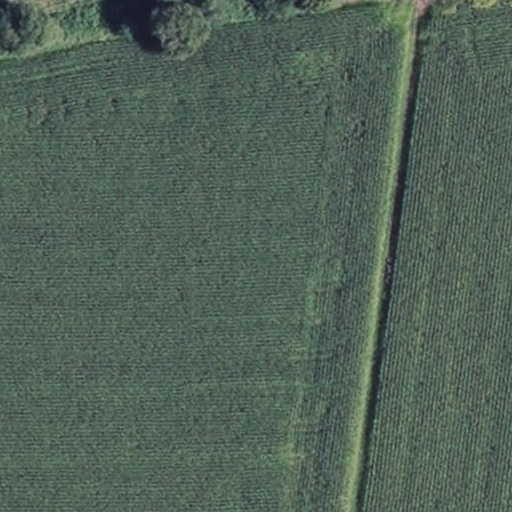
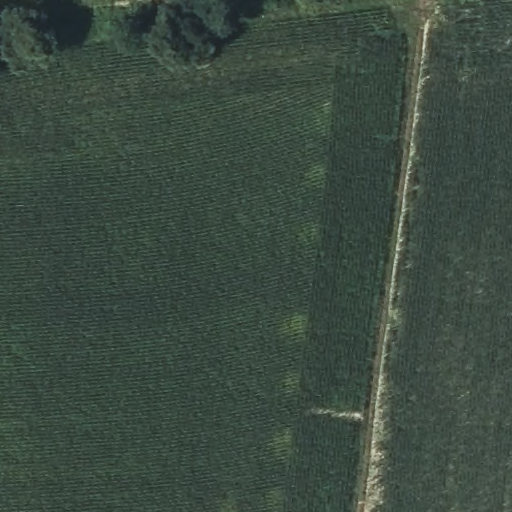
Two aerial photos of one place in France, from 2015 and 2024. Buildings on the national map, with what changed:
[]

